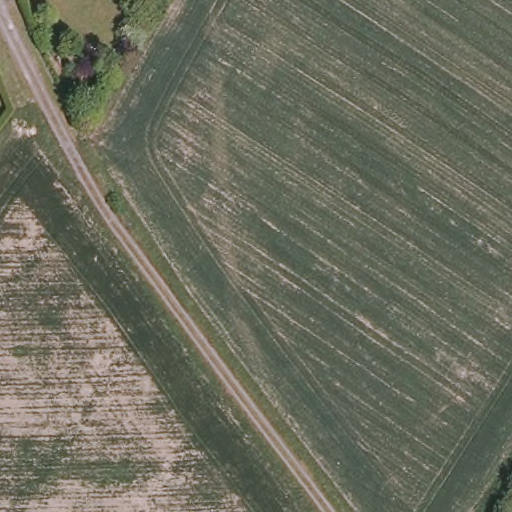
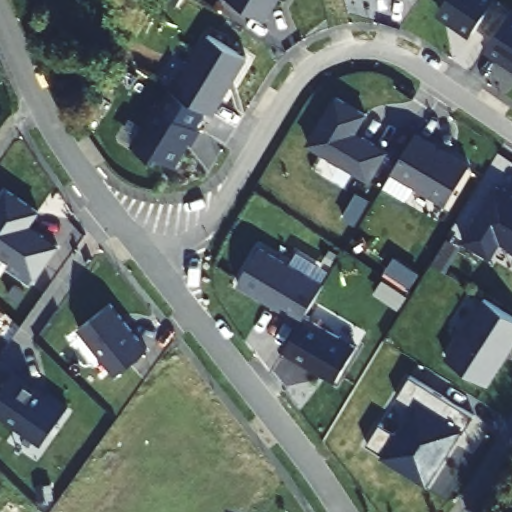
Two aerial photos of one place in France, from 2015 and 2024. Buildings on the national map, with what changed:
new [(269,19),(233,0),(280,0),(269,19)]
new [(470,36),(437,14),(447,0),(495,0),(470,36)]
new [(486,50),(512,13),(512,68),(486,50)]
new [(249,58),(214,114),(174,89),(207,32),(249,58)]
new [(209,110),(199,127),(164,106),(174,89),(209,110)]
new [(369,113),(359,131),(390,149),(371,180),(309,143),(337,94),(369,113)]
new [(202,129),(193,143),(191,142),(176,165),(160,156),(158,160),(133,144),(158,102),(202,129)]
new [(417,134),(472,167),(448,206),(394,173),(417,134)]
new [(512,195),(512,248),(503,242),(493,258),(466,242),(498,187),(512,195)]
new [(26,227),(39,237),(43,231),(57,241),(31,280),(9,265),(12,261),(0,253),(0,201),(8,188),(40,208),(26,227)]
new [(324,282),(300,326),(285,318),(289,313),(239,284),(263,244),(324,282)]
new [(512,314),(512,348),(489,383),(447,356),(484,296),(512,314)]
new [(78,327),(112,300),(149,349),(115,375),(78,327)]
new [(359,350),(338,384),(286,353),(306,318),(359,350)]
new [(0,391),(16,367),(68,403),(42,443),(0,415),(0,391)]
new [(467,434),(463,432),(431,484),(369,446),(383,424),(402,436),(418,409),(399,398),(413,377),(477,417),(467,434)]

